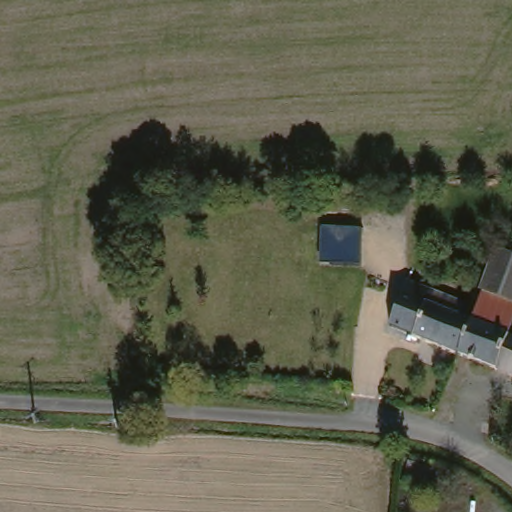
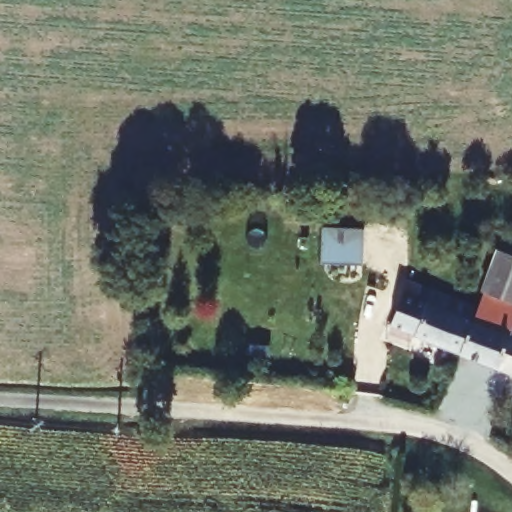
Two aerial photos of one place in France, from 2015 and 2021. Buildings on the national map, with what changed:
unchanged [(322,226),(364,229),(362,265),(320,262),(322,226)]
unchanged [(474,309),(479,296),(475,294),(493,254),(512,262),(512,317),(504,338),(463,322),(470,307),(474,309)]
unchanged [(462,304),(470,307),(463,322),(450,353),(404,334),(423,288),(462,304)]
unchanged [(512,341),(512,378),(450,353),(463,322),(504,338),(512,341)]

